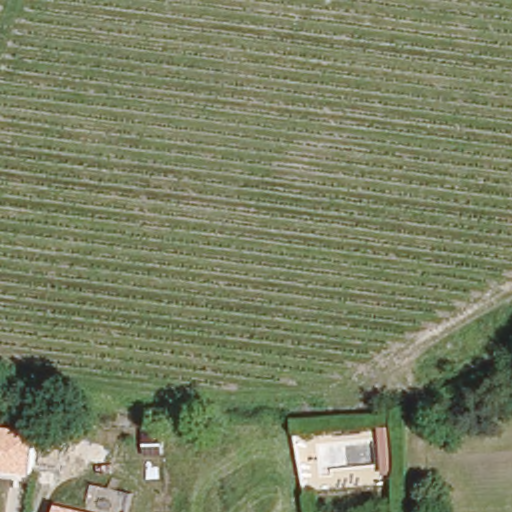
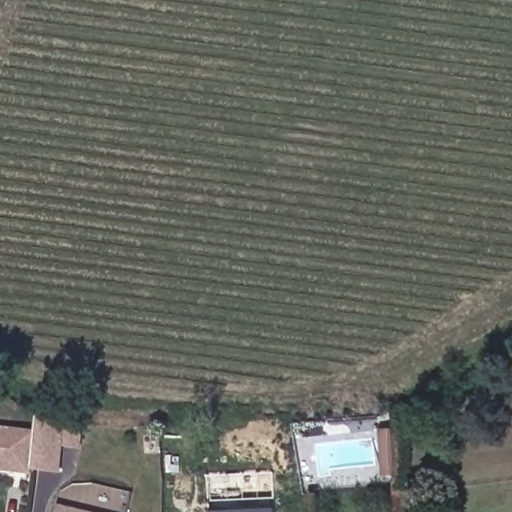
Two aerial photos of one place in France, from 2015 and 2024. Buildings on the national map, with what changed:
new [(34,427),(35,416),(82,421),(80,447),(63,446),(60,472),(31,468),(34,427)]
unchanged [(0,425),(34,427),(30,474),(0,471),(0,425)]
unchanged [(56,512),(58,506),(85,512),(56,512)]
new [(275,506),(275,512),(209,512),(209,509),(275,506)]

